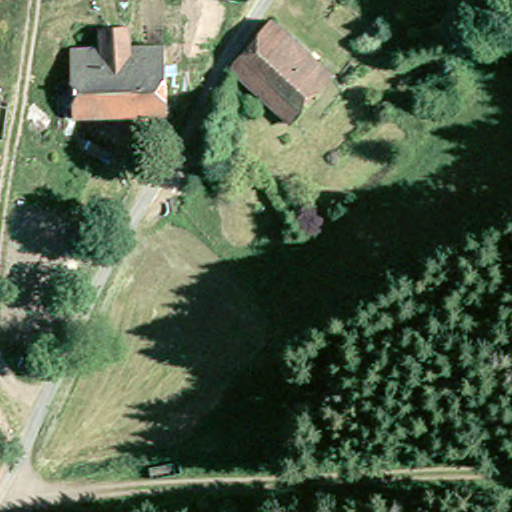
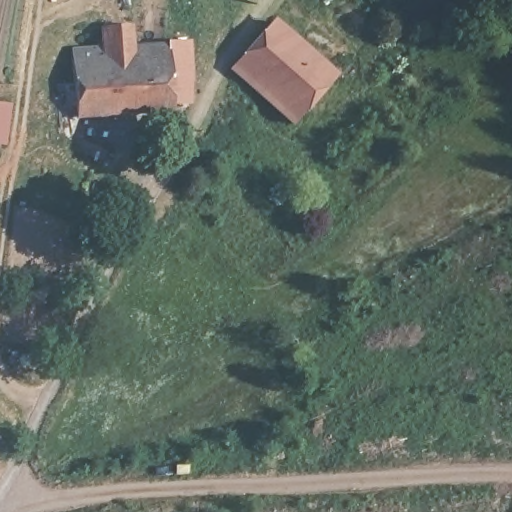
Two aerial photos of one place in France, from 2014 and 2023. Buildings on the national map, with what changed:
unchanged [(330,78),(315,95),(320,100),(312,108),(307,104),(289,124),(230,71),(267,24),(330,78)]
unchanged [(170,117),(80,120),(74,145),(61,131),(60,92),(60,84),(76,83),(75,50),(105,50),(104,29),(132,28),(132,48),(165,46),(170,117)]

